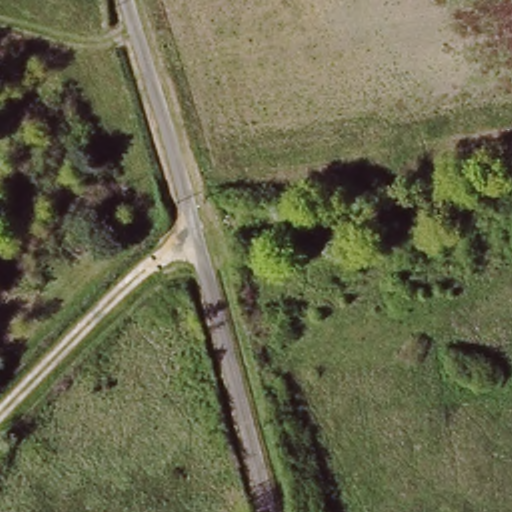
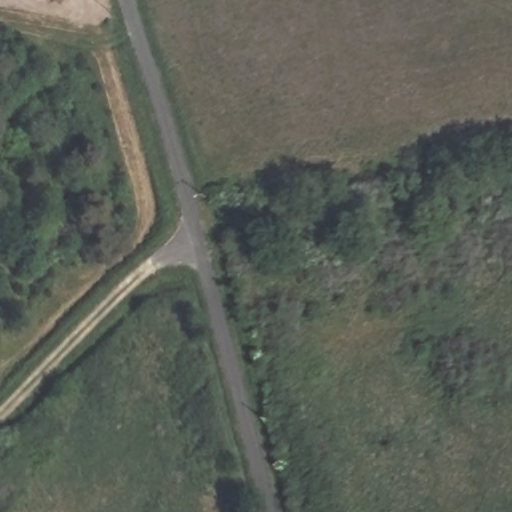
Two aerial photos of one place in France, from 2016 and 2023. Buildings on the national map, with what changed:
[]

